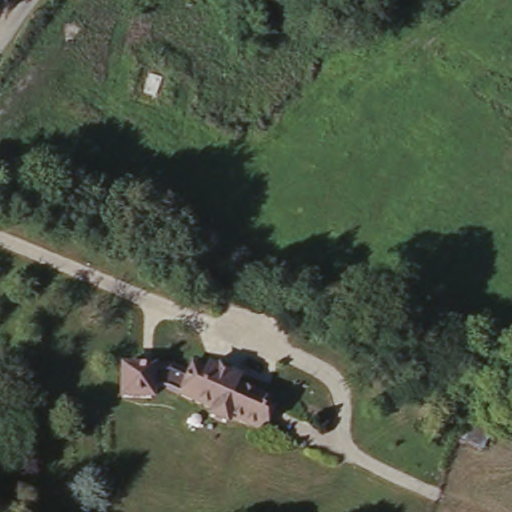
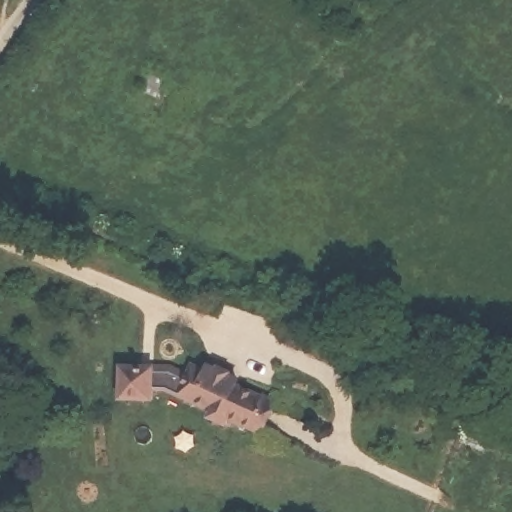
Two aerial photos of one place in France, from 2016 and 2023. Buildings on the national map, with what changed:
unchanged [(158,385),(155,400),(119,399),(120,362),(160,365),(189,380),(182,395),(158,385)]
unchanged [(211,372),(214,365),(226,370),(227,367),(240,372),(234,383),(276,400),(263,429),(235,417),(231,425),(210,416),(213,408),(182,395),(196,365),(211,372)]

